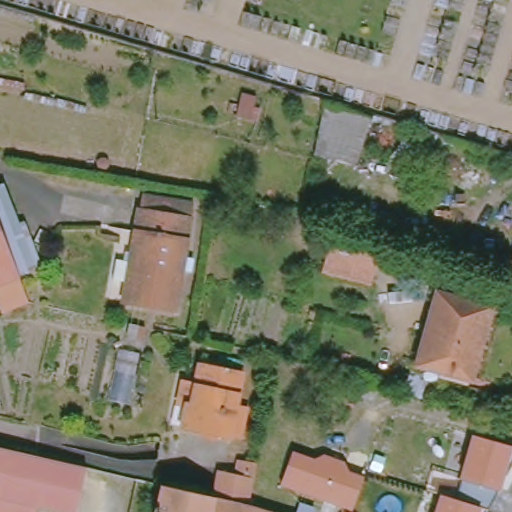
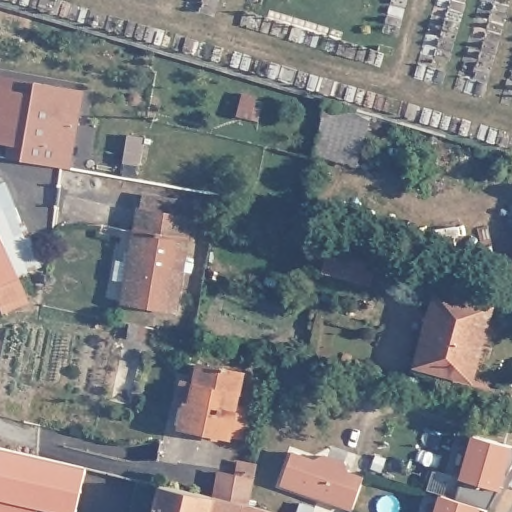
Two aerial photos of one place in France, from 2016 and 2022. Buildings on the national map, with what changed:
new [(8,144),(0,143),(0,75),(85,90),(71,167),(6,159),(8,144)]
unchanged [(329,109),(375,117),(364,174),(317,158),(329,109)]
unchanged [(121,263),(133,265),(142,224),(144,212),(197,221),(194,235),(179,315),(126,305),(130,285),(117,283),(121,263)]
unchanged [(32,295),(7,305),(0,308),(0,220),(21,271),(32,295)]
unchanged [(323,271),(329,240),(378,251),(371,282),(323,271)]
unchanged [(496,311),(476,382),(420,366),(440,295),(496,311)]
unchanged [(243,440),(233,438),(186,429),(191,407),(183,405),(187,383),(200,385),(204,367),(246,375),(239,407),(250,410),(243,440)]
unchanged [(500,487),(460,476),(471,433),(511,445),(500,487)]
unchanged [(69,512),(34,505),(32,512),(0,512),(0,446),(85,464),(74,512),(69,512)]
unchanged [(352,507),(281,482),(293,450),(315,457),(325,452),(345,460),(348,470),(362,475),(352,507)]
unchanged [(221,498),(226,473),(257,480),(253,505),(278,512),(159,512),(165,485),(221,498)]
unchanged [(433,512),(439,494),(479,505),(477,512),(433,512)]

